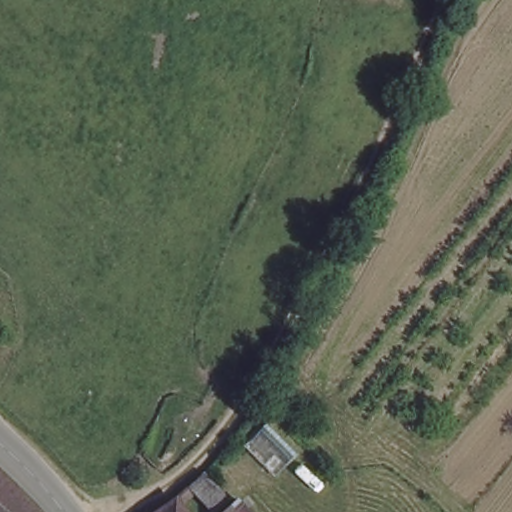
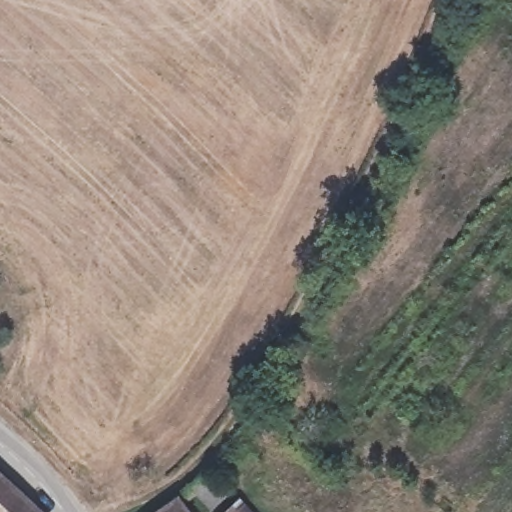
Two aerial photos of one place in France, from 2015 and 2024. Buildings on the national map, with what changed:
unchanged [(177,496),(198,480),(226,508),(233,501),(243,512),(192,512),(177,496)]
unchanged [(30,512),(0,512),(0,482),(30,512)]
unchanged [(172,500),(181,512),(155,512),(172,500)]

